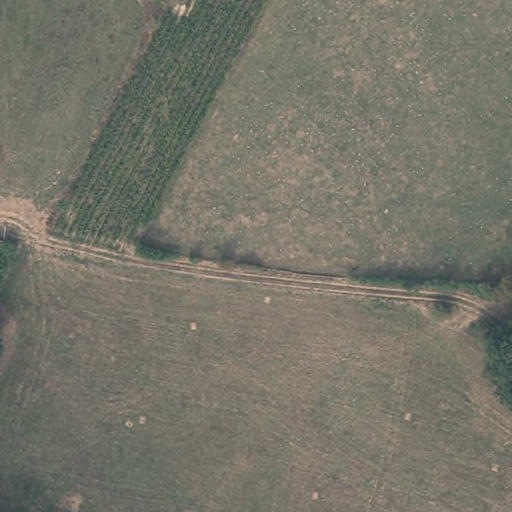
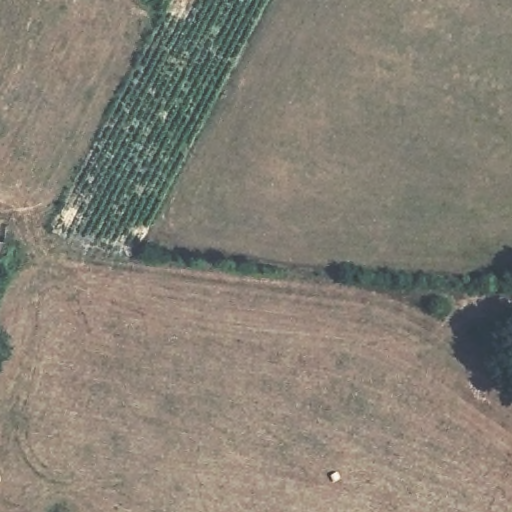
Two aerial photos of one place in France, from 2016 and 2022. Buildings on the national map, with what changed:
unchanged [(2,240),(0,250),(0,239),(2,240)]

